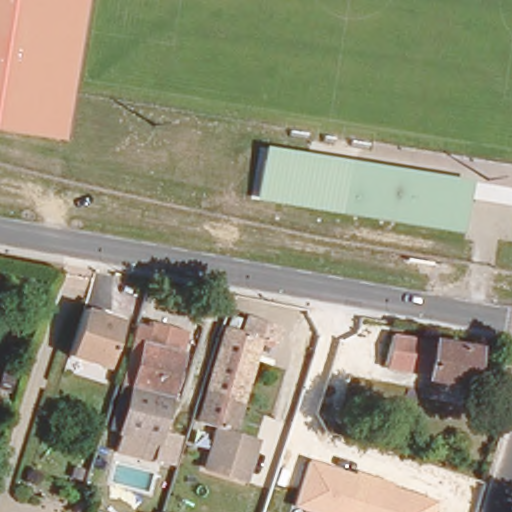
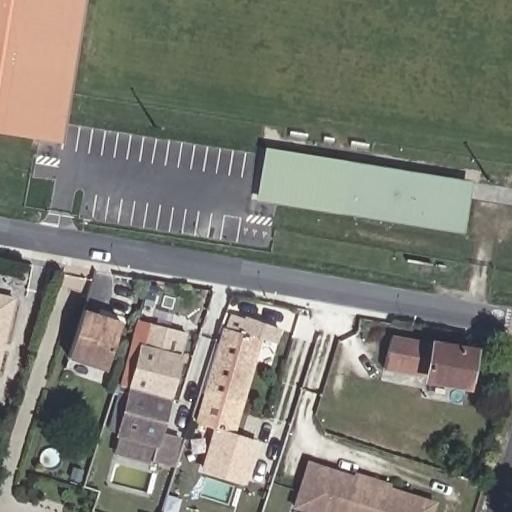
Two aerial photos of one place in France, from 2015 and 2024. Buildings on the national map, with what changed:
unchanged [(78,0),(54,146),(0,138),(0,0),(78,0)]
unchanged [(257,199),(266,147),(345,160),(332,215),(257,199)]
unchanged [(332,215),(345,160),(468,178),(458,234),(332,215)]
new [(15,297),(0,365),(0,294),(15,297)]
unchanged [(106,375),(66,360),(83,307),(122,321),(106,375)]
unchanged [(124,373),(135,335),(146,339),(154,313),(190,323),(172,387),(155,451),(152,450),(149,462),(121,454),(124,441),(119,439),(123,424),(122,423),(111,420),(124,373)]
unchanged [(278,329),(274,344),(259,340),(231,437),(256,444),(244,483),(204,471),(215,431),(198,426),(225,331),(241,335),(245,320),(278,329)]
unchanged [(473,350),(466,385),(424,378),(426,371),(387,364),(392,336),(473,350)]
unchanged [(163,435),(169,436),(184,440),(175,470),(155,465),(163,435)]
unchanged [(354,470),(392,483),(391,486),(438,501),(434,512),(306,512),(292,507),(307,460),(354,474),(354,470)]

